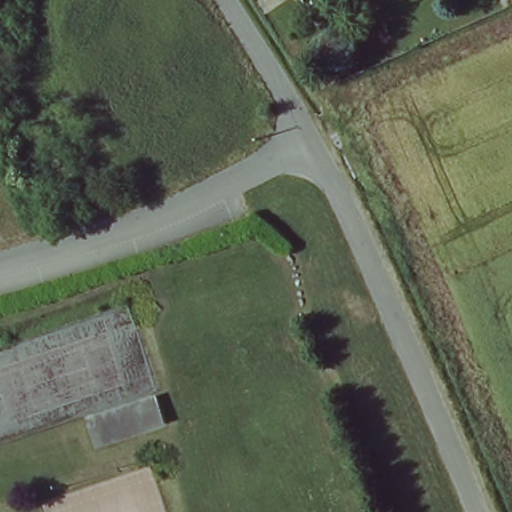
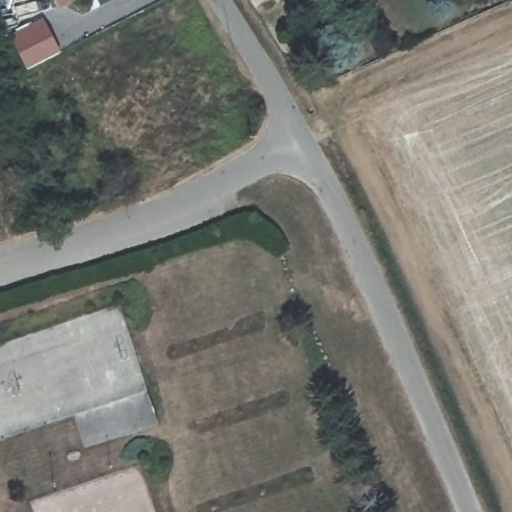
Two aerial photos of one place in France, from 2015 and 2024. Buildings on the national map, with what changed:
new [(55,0),(79,0),(60,10),(55,0)]
new [(43,19),(61,52),(26,71),(10,36),(43,19)]

